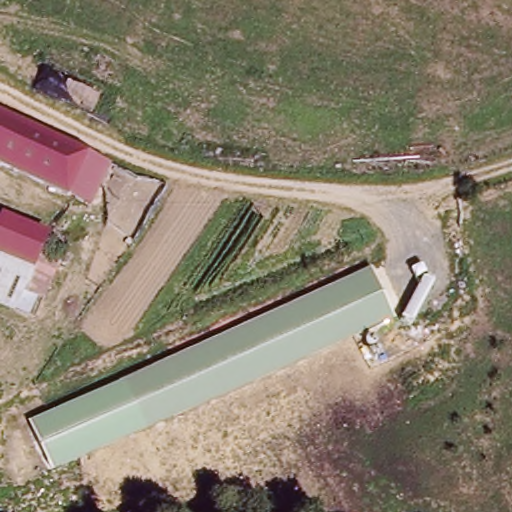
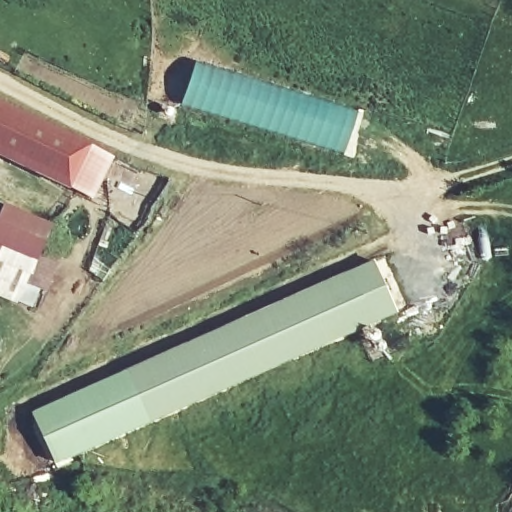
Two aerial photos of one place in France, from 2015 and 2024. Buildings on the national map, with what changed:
new [(356,112),(342,155),(181,105),(195,63),(356,112)]
unchanged [(110,157),(95,191),(75,180),(73,183),(0,150),(0,100),(58,127),(89,141),(110,157)]
new [(172,116),(168,117),(163,116),(162,111),(165,107),(170,107),(173,111),(172,116)]
unchanged [(37,259),(0,242),(0,220),(5,207),(51,227),(37,259)]
unchanged [(45,241),(64,251),(37,311),(0,297),(0,242),(37,259),(45,241)]
unchanged [(373,261),(399,315),(147,426),(124,372),(373,261)]
unchanged [(53,467),(30,416),(124,372),(147,426),(53,467)]

